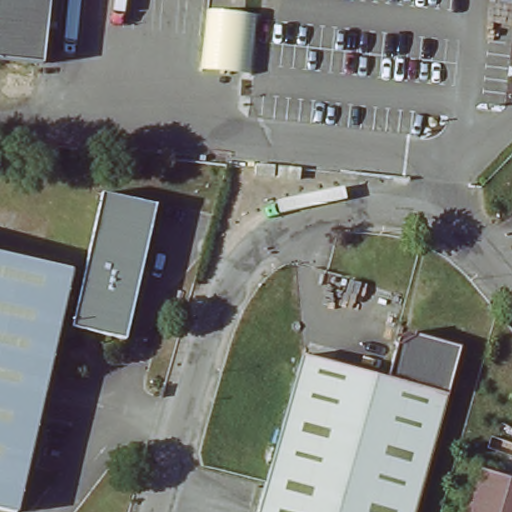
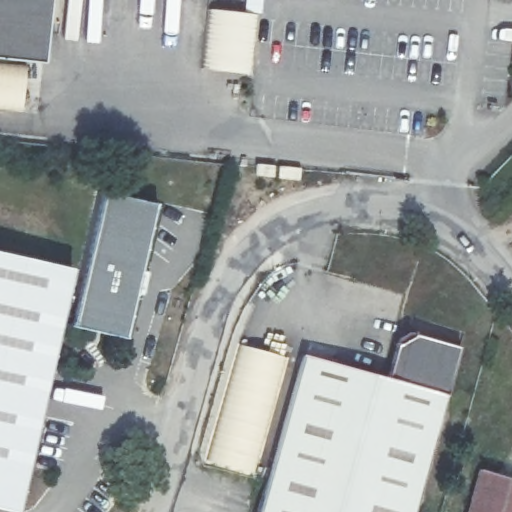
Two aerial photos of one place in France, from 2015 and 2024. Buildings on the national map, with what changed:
unchanged [(46,61),(0,56),(0,0),(52,0),(46,61)]
unchanged [(124,340),(71,327),(100,192),(155,202),(124,340)]
unchanged [(16,511),(0,508),(0,251),(70,265),(16,511)]
unchanged [(460,349),(416,512),(257,512),(300,355),(386,380),(399,333),(460,349)]
new [(238,343),(289,357),(268,431),(258,420),(244,404),(241,406),(236,411),(220,408),(238,343)]
unchanged [(512,475),(512,512),(467,512),(481,465),(512,475)]

